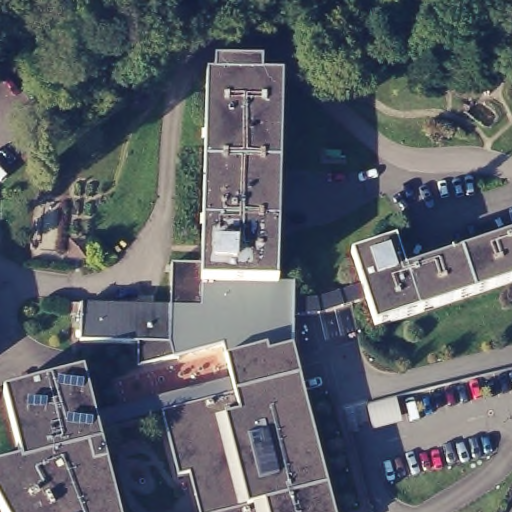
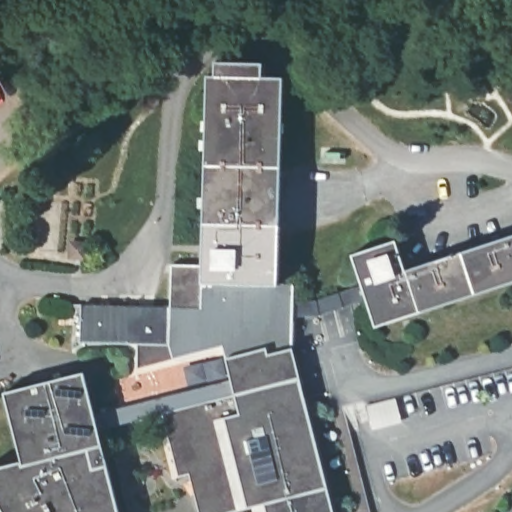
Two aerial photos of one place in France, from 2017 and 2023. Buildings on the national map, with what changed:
unchanged [(283,74),(277,282),(294,282),(293,297),(316,297),(361,282),(351,251),(396,237),(404,266),(512,231),(512,277),(374,322),(365,295),(318,310),(293,311),(291,344),(268,350),(266,342),(225,353),(223,342),(172,356),(168,341),(79,340),(80,301),(200,306),(206,71),(214,72),(214,57),(263,59),(263,72),(283,74)]
unchanged [(186,475),(176,478),(159,415),(98,430),(118,512),(1,512),(0,510),(0,465),(20,461),(2,392),(83,371),(92,414),(229,378),(225,353),(266,342),(268,350),(291,344),(333,512),(196,512),(186,475)]

